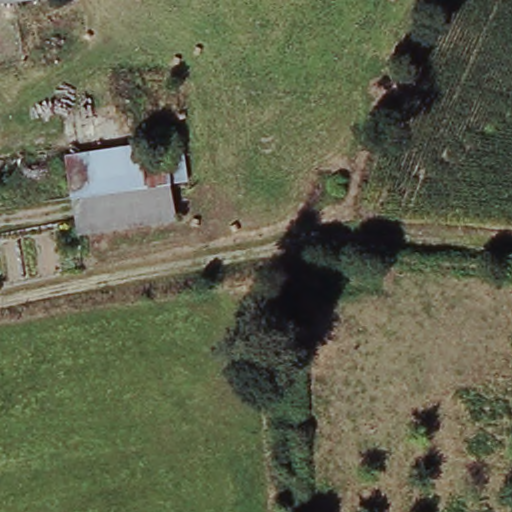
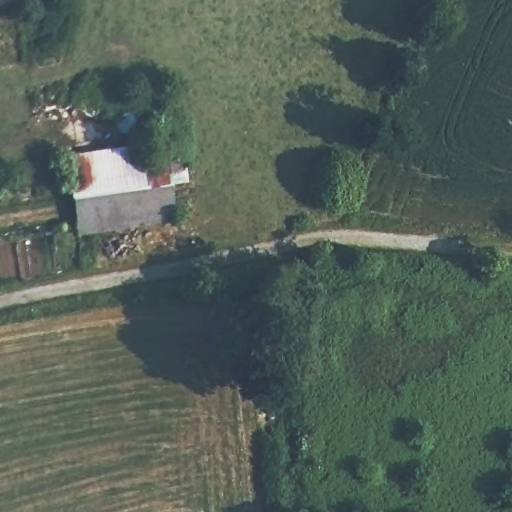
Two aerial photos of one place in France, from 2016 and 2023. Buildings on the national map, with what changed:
unchanged [(35,0),(0,4),(0,0),(35,0)]
unchanged [(82,217),(77,191),(75,168),(174,153),(182,221),(84,233),(82,217)]

